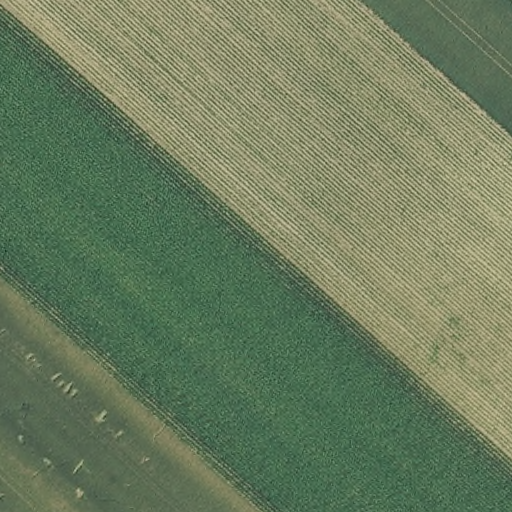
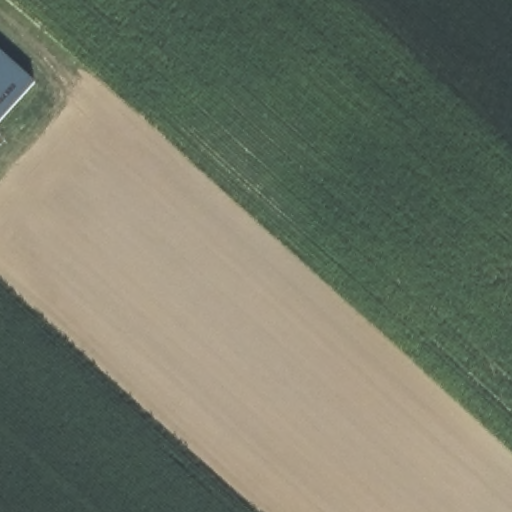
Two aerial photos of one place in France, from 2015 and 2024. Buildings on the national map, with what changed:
new [(0,121),(0,46),(38,80),(0,121)]

